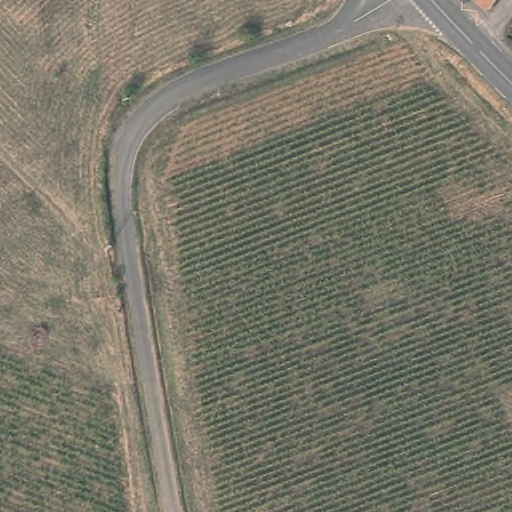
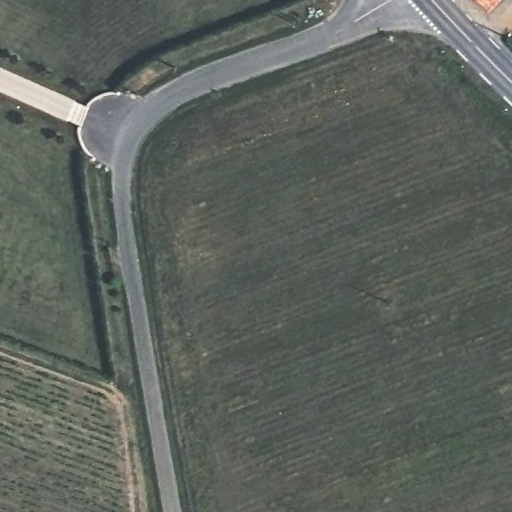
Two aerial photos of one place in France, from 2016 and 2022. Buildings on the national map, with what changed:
unchanged [(494,0),(491,4),(487,0),(494,0)]

